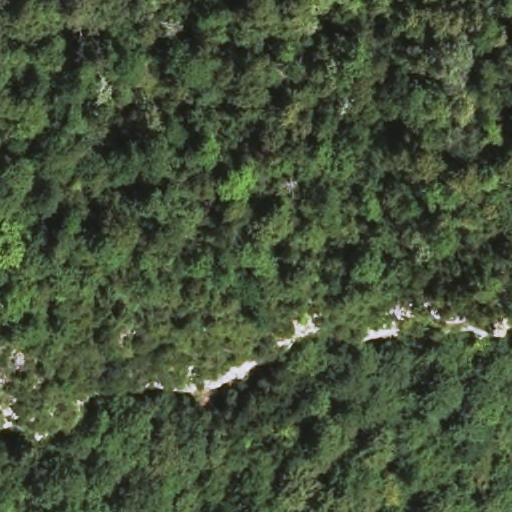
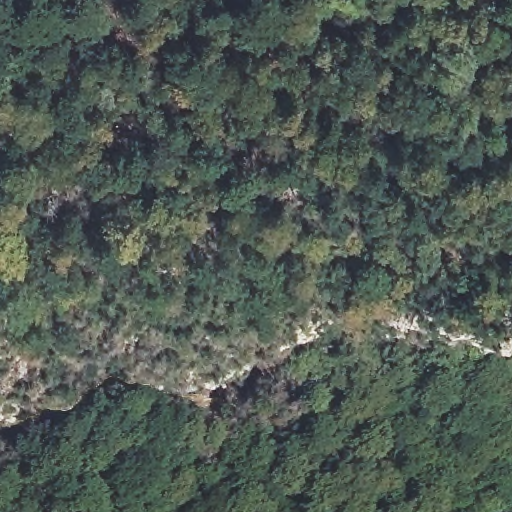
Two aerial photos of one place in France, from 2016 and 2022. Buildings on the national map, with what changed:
[]

